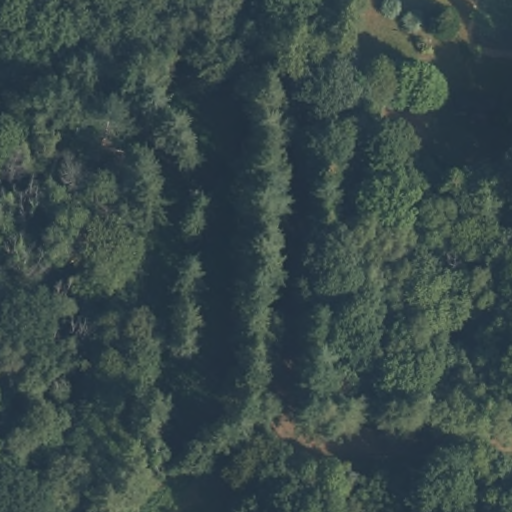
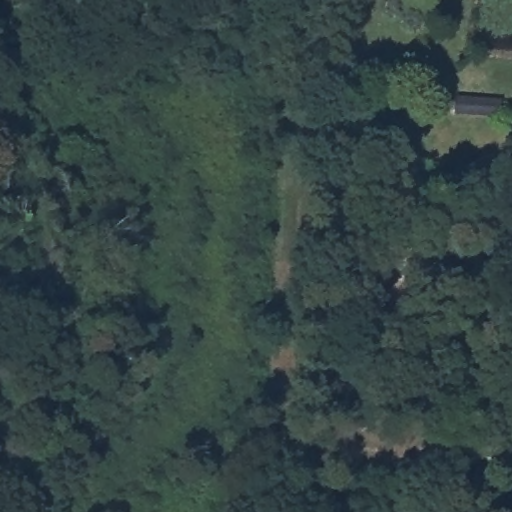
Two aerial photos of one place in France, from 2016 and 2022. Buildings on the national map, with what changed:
unchanged [(505,95),(503,116),(456,113),(457,91),(505,95)]
unchanged [(507,167),(510,194),(467,191),(468,169),(507,167)]

